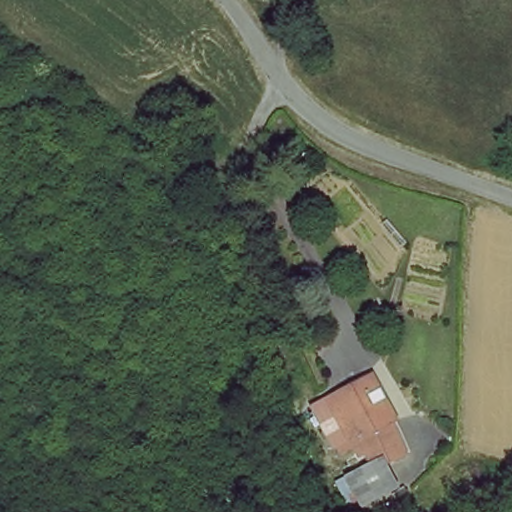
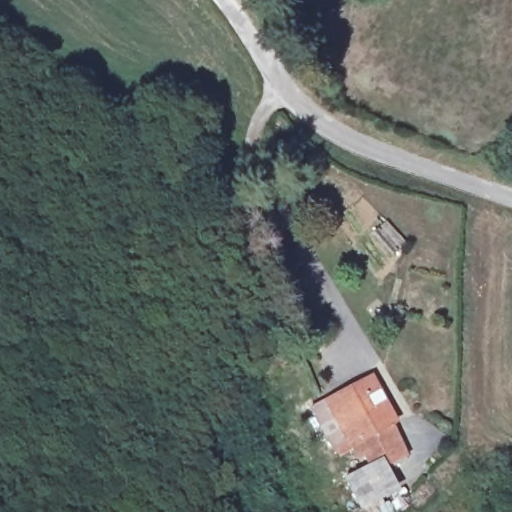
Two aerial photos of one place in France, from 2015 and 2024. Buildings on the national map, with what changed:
unchanged [(390,467),(401,490),(354,512),(339,481),(362,466),(352,446),(332,461),(309,409),(372,374),(403,424),(397,427),(409,457),(390,467)]

